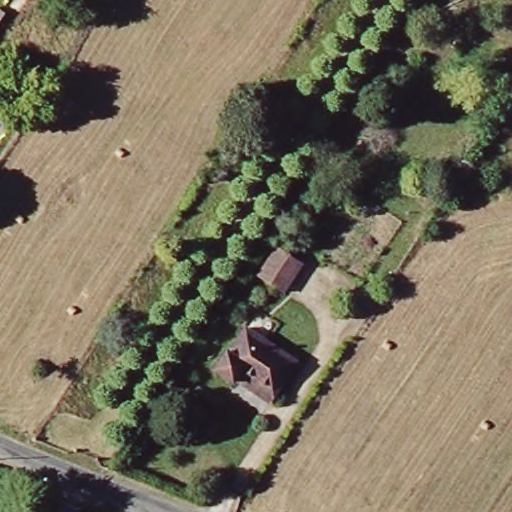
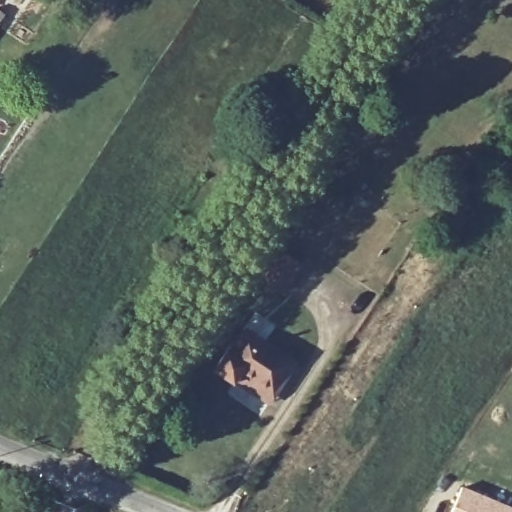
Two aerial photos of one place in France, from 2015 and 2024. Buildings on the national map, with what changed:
unchanged [(300,257),(281,286),(257,270),(276,241),(300,257)]
unchanged [(230,382),(212,370),(224,350),(227,352),(242,328),(292,361),(272,395),(267,402),(232,380),(230,382)]
new [(512,506),(512,512),(450,512),(461,485),(512,506)]

